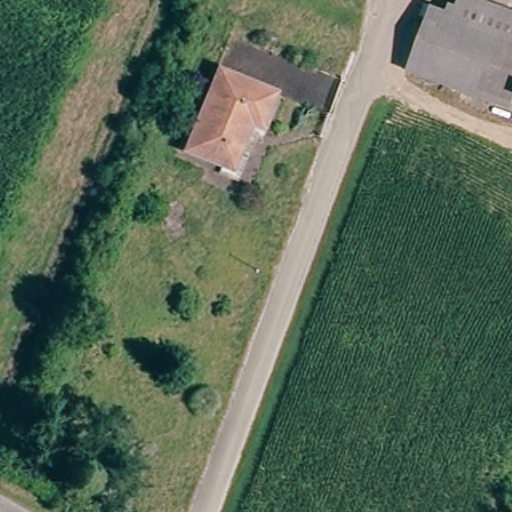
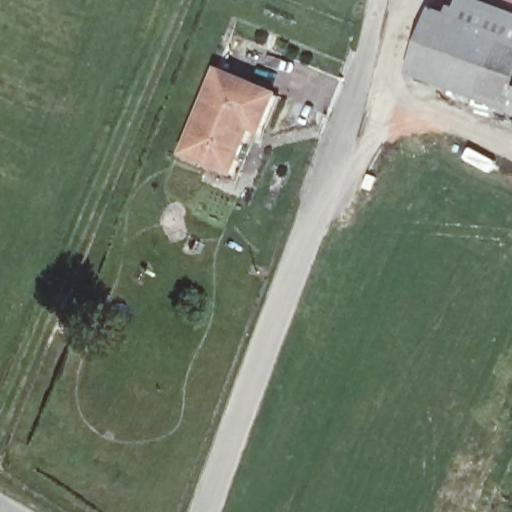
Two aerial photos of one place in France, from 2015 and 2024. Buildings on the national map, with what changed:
unchanged [(454,0),(473,0),(512,14),(512,111),(405,75),(427,7),(450,14),(454,0)]
unchanged [(512,0),(512,2),(506,0),(512,0)]
unchanged [(237,170),(189,154),(216,75),(273,94),(265,115),(246,172),(237,170)]

